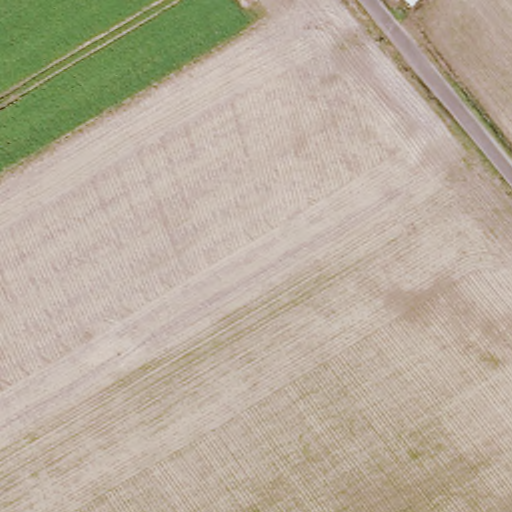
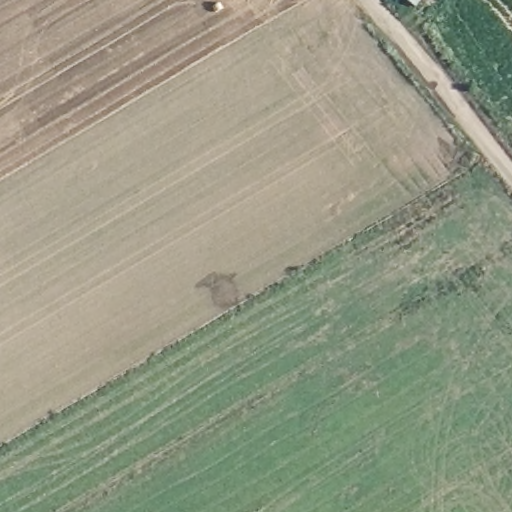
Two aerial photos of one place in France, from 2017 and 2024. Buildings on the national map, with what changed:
unchanged [(401,0),(417,0),(410,9),(401,0)]

